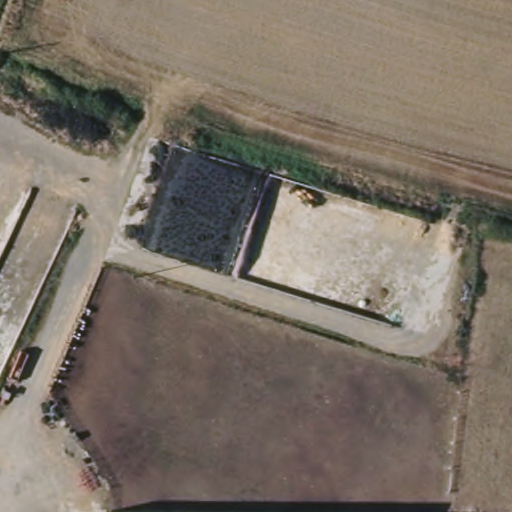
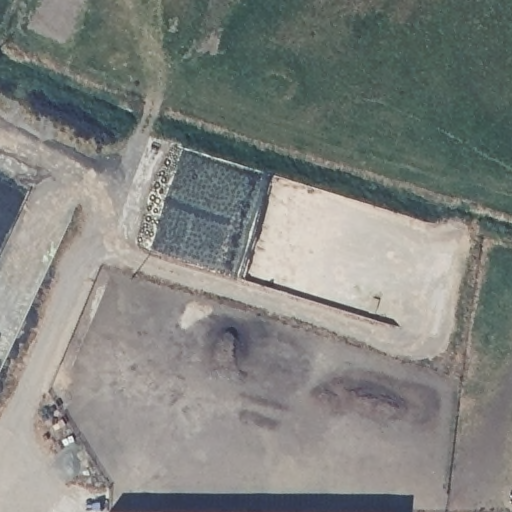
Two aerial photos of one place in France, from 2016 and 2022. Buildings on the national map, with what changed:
unchanged [(110,505),(327,512),(110,512),(110,505)]

